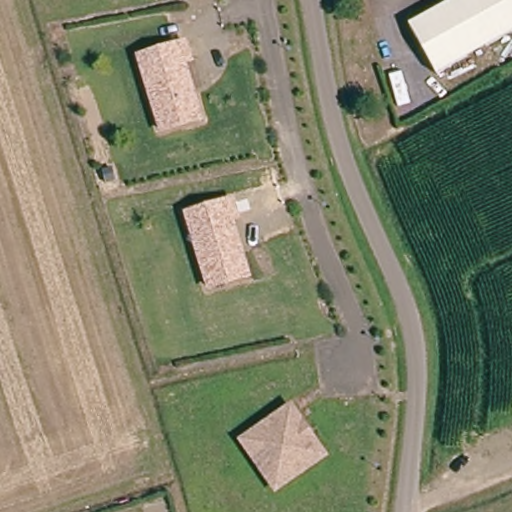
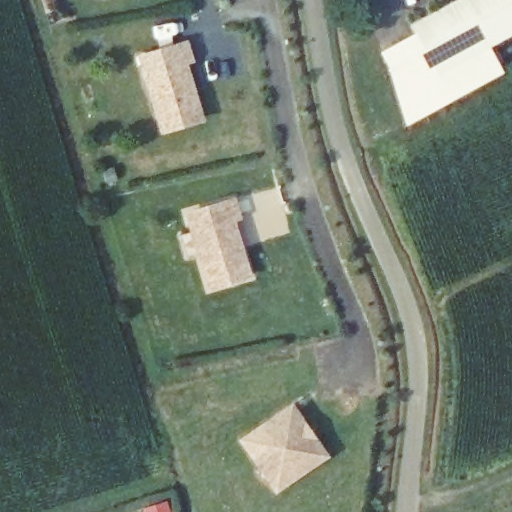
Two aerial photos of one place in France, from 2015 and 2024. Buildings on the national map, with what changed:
unchanged [(410,23),(454,0),(512,0),(512,32),(490,44),(437,72),(410,23)]
new [(415,32),(437,72),(488,45),(504,72),(406,125),(379,51),(415,32)]
unchanged [(206,123),(166,135),(144,60),(190,47),(195,64),(188,66),(206,123)]
unchanged [(249,281),(210,292),(187,217),(233,204),(238,222),(231,224),(249,281)]
unchanged [(327,460),(278,495),(241,445),(290,410),(303,427),(299,430),(310,445),(314,442),(327,460)]

